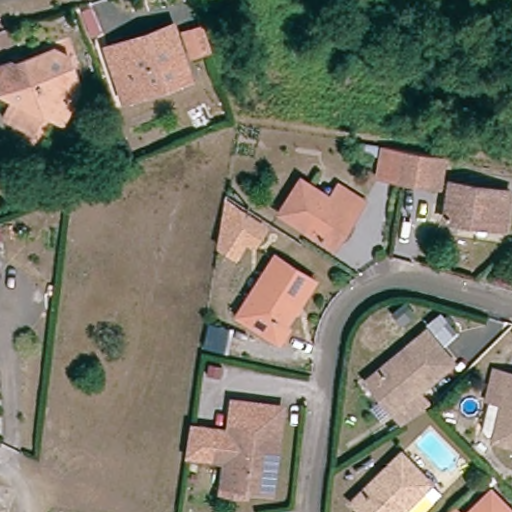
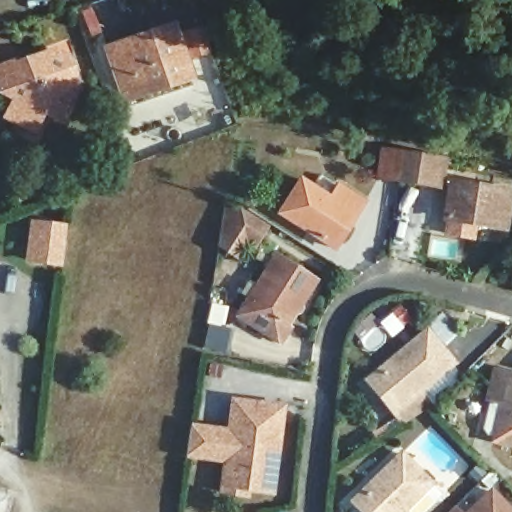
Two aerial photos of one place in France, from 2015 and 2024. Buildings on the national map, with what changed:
unchanged [(126,105),(109,54),(130,46),(171,32),(174,42),(188,84),(126,105)]
unchanged [(39,118),(30,135),(1,120),(10,102),(0,97),(0,69),(4,67),(5,70),(20,65),(46,57),(64,66),(74,95),(68,108),(58,127),(48,122),(39,118)]
unchanged [(433,185),(394,180),(374,177),(379,146),(398,150),(437,156),(433,185)]
unchanged [(277,219),(300,184),(327,201),(335,188),(357,202),(363,206),(353,221),(332,254),(277,219)]
unchanged [(510,202),(505,238),(445,229),(451,192),(510,202)]
unchanged [(253,244),(250,242),(229,228),(239,211),(261,225),(264,227),(253,244)]
new [(28,219),(67,224),(61,268),(23,265),(28,219)]
unchanged [(288,329),(278,345),(235,317),(273,256),(311,280),(317,283),(288,329)]
unchanged [(454,333),(441,345),(426,327),(440,315),(454,333)]
unchanged [(402,428),(365,385),(425,334),(452,365),(417,395),(428,408),(428,409),(428,410),(427,410),(427,411),(428,411),(428,412),(402,428)]
unchanged [(494,438),(504,400),(489,396),(497,365),(512,369),(512,375),(512,443),(494,438)]
unchanged [(250,508),(225,505),(229,474),(190,468),(194,443),(194,438),(233,443),(237,413),(284,420),(282,437),(285,437),(276,505),(253,502),(251,502),(250,508)]
unchanged [(404,508),(408,512),(364,512),(353,502),(402,452),(431,480),(404,508)]
unchanged [(505,512),(478,512),(491,498),(505,512)]

